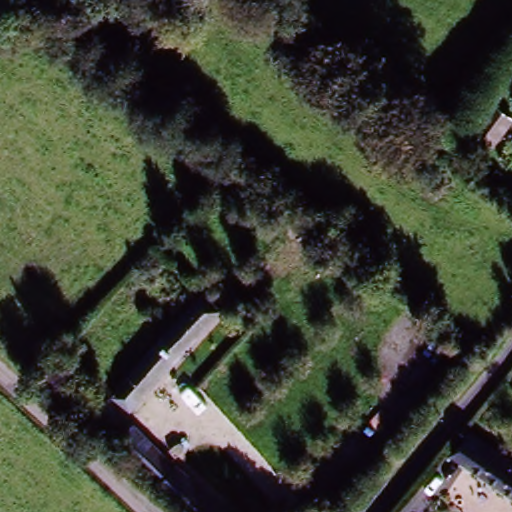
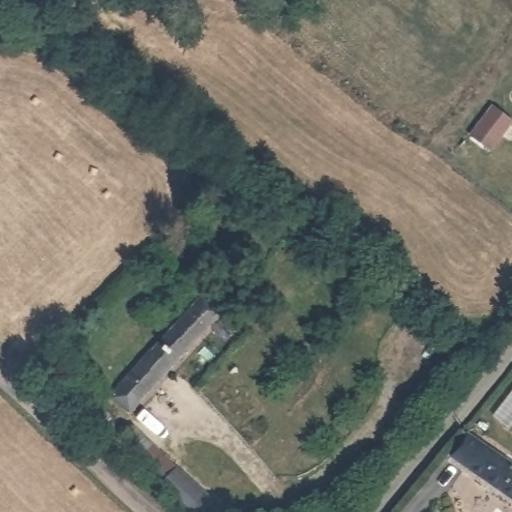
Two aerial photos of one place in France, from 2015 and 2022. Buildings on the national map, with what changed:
unchanged [(493,111),(512,125),(512,128),(512,129),(493,155),(491,153),(472,139),(493,111)]
unchanged [(97,409),(117,388),(151,351),(145,345),(165,324),(172,330),(201,299),(219,316),(136,405),(116,426),(97,409)]
unchanged [(438,443),(455,423),(512,464),(512,497),(438,443)]
unchanged [(191,512),(163,486),(167,481),(124,442),(140,425),(234,512),(191,512)]

